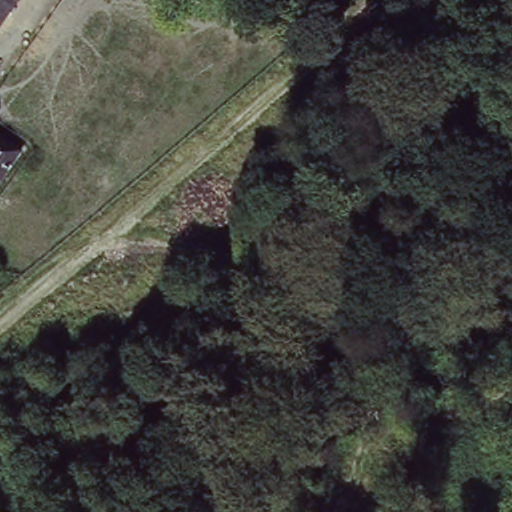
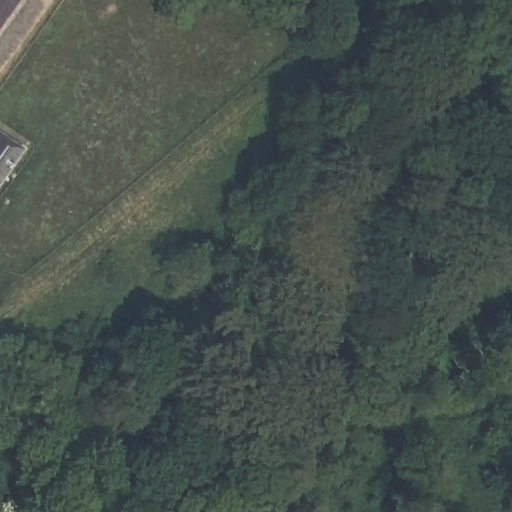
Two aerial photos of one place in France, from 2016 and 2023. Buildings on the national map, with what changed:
unchanged [(0,0),(15,0),(0,21),(0,0)]
unchanged [(0,175),(0,126),(22,142),(0,175)]

